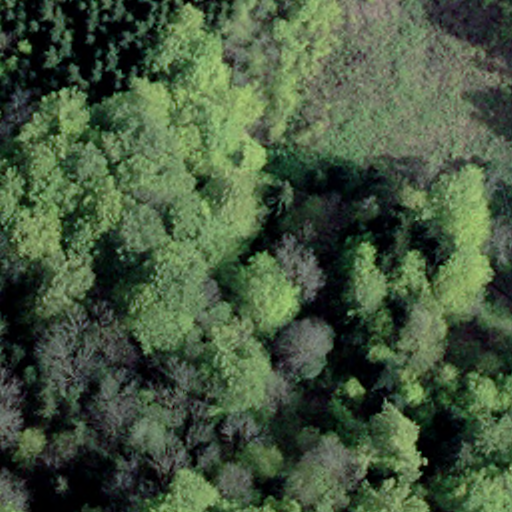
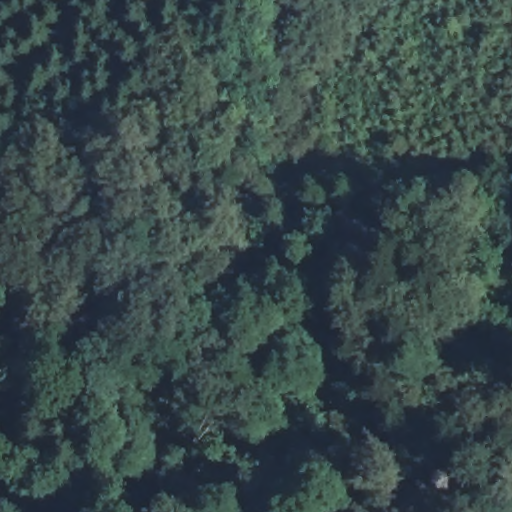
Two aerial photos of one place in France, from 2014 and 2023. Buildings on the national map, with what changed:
[]

